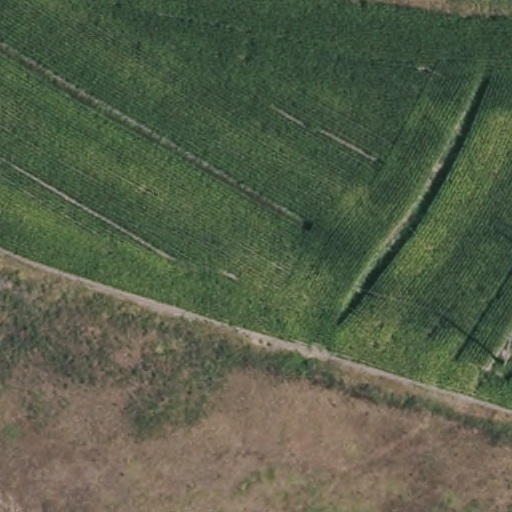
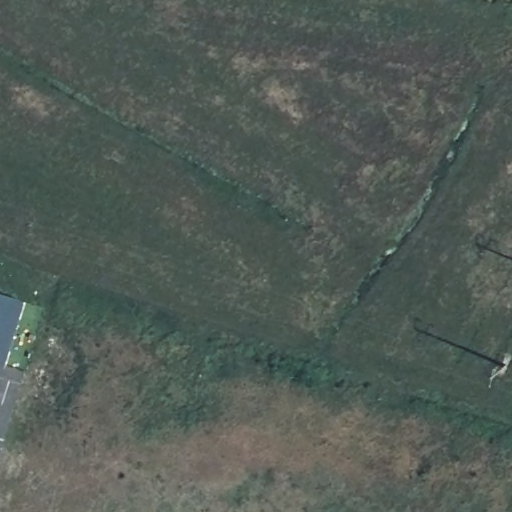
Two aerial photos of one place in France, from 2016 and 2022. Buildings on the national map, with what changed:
new [(26,303),(20,320),(13,318),(3,350),(10,352),(6,367),(0,365),(0,295),(26,303)]

